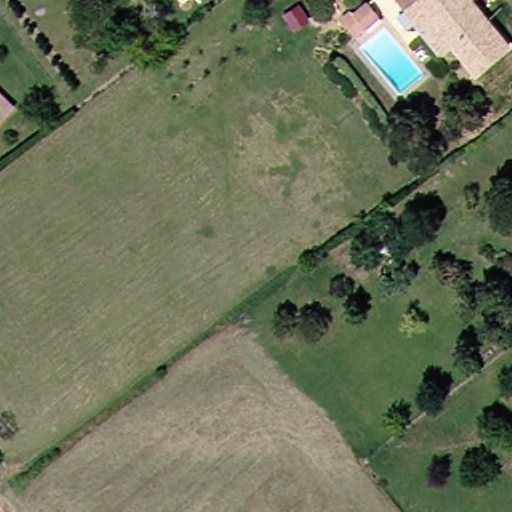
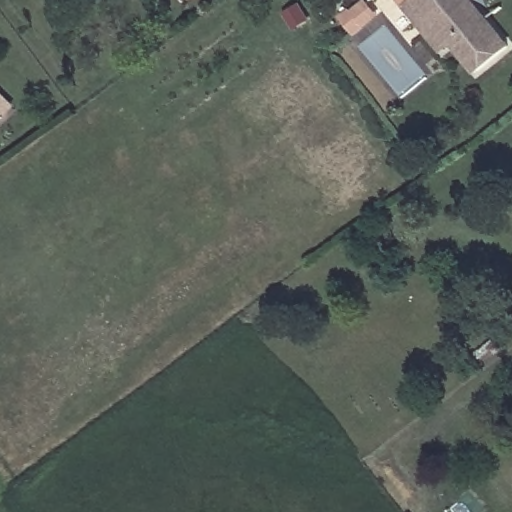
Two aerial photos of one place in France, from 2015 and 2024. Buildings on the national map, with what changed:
unchanged [(420,0),(486,0),(512,32),(512,42),(485,63),(462,32),(457,36),(451,40),(431,15),(420,0)]

